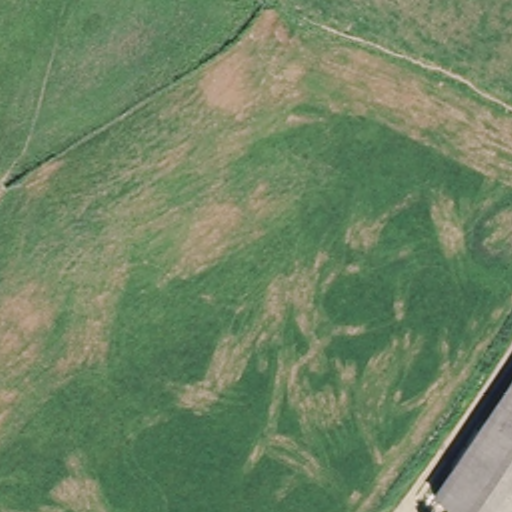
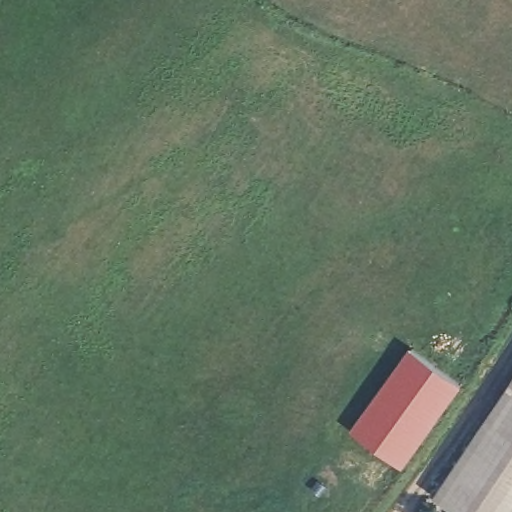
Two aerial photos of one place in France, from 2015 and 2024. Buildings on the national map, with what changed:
new [(462,384),(403,467),(350,430),(407,347),(462,384)]
unchanged [(512,381),(512,512),(461,512),(443,499),(438,495),(512,381)]

